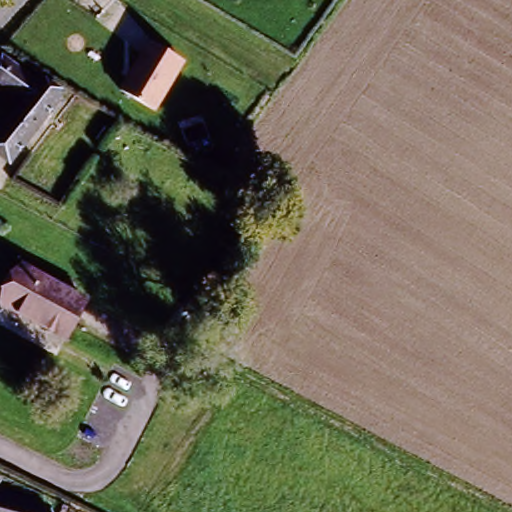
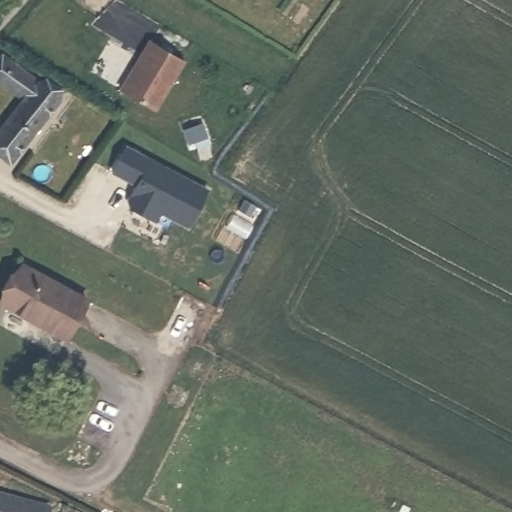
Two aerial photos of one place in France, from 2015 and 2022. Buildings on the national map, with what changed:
unchanged [(182,64),(152,111),(117,89),(148,40),(182,64)]
unchanged [(0,167),(0,125),(17,106),(0,91),(0,55),(7,46),(70,96),(17,158),(4,171),(0,167)]
new [(207,190),(189,225),(162,212),(158,220),(128,203),(140,183),(130,178),(128,182),(112,172),(126,147),(207,190)]
unchanged [(83,300),(60,339),(0,305),(0,304),(22,265),(83,300)]
unchanged [(49,512),(0,512),(0,495),(49,512)]

